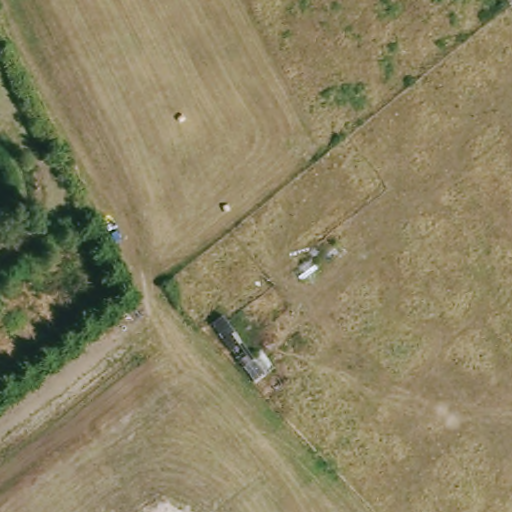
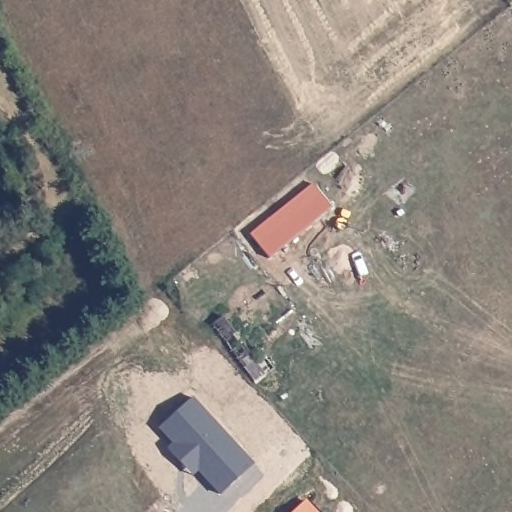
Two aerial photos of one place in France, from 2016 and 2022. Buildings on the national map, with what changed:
new [(312,183),(332,208),(268,258),(249,233),(312,183)]
new [(177,462),(166,450),(172,445),(157,429),(191,398),(252,466),(219,496),(197,471),(191,477),(177,462)]
new [(307,501),(316,512),(293,512),(307,501)]

